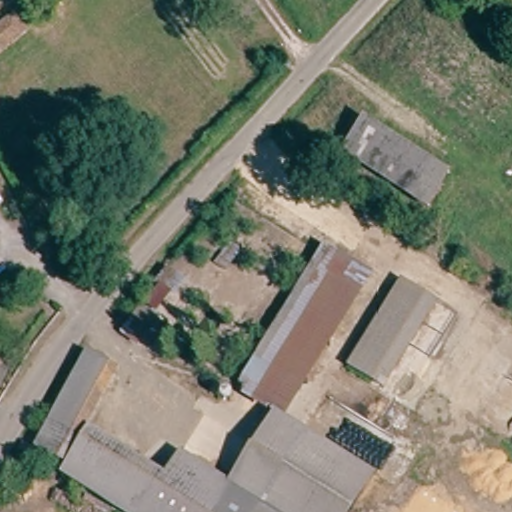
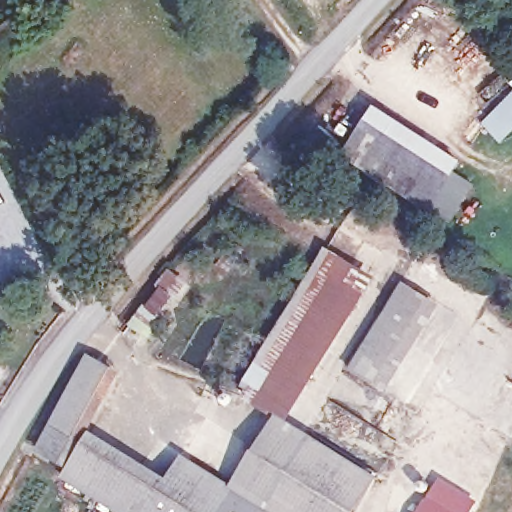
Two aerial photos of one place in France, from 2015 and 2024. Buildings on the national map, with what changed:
unchanged [(32,30),(0,57),(0,29),(19,13),(32,30)]
new [(512,93),(512,133),(502,143),(482,124),(512,93)]
unchanged [(452,182),(432,213),(347,156),(369,126),(452,182)]
unchanged [(237,392),(326,246),(377,280),(290,421),(276,412),(272,417),(239,399),(232,408),(223,401),(232,389),(237,392)]
unchanged [(136,349),(122,336),(148,306),(152,311),(167,296),(160,288),(175,272),(191,288),(136,349)]
unchanged [(440,303),(386,387),(352,365),(408,284),(440,303)]
unchanged [(53,413),(78,372),(91,351),(115,367),(101,388),(75,428),(53,413)]
unchanged [(230,482),(272,417),(276,412),(290,421),(381,475),(358,512),(210,512),(230,482)]
unchanged [(64,464),(34,444),(53,413),(75,428),(84,433),(64,464)]
unchanged [(94,496),(57,473),(64,464),(84,433),(119,457),(94,496)]
unchanged [(210,512),(142,512),(161,484),(182,451),(230,482),(210,512)]
unchanged [(119,457),(161,484),(142,512),(119,512),(94,496),(119,457)]
new [(467,495),(476,501),(468,512),(414,512),(437,476),(467,495)]

